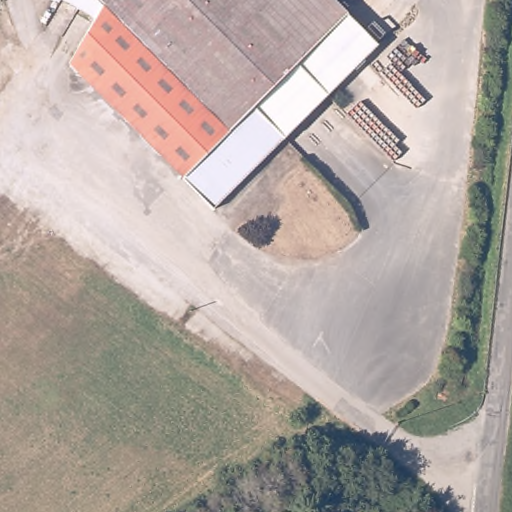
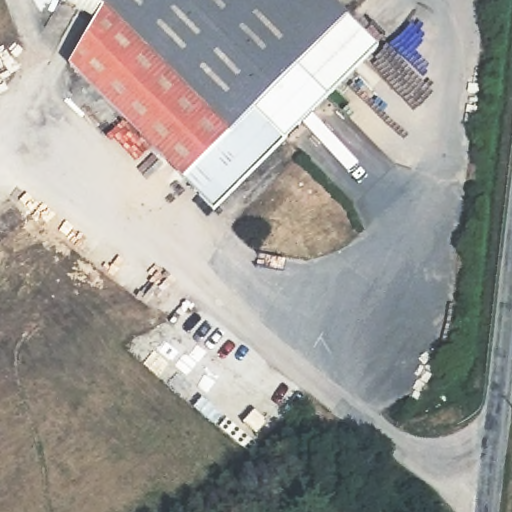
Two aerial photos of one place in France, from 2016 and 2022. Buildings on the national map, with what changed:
unchanged [(71,0),(338,0),(382,45),(214,206),(72,55),(98,17),(71,0)]

